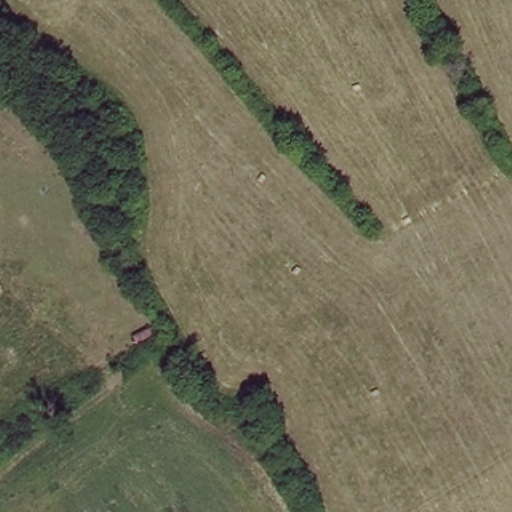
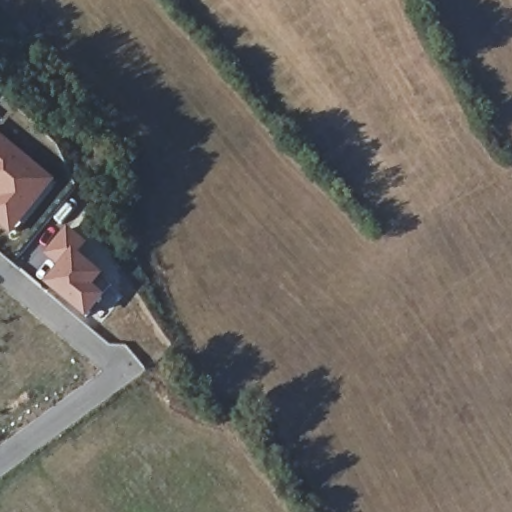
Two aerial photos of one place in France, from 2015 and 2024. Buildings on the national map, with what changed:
new [(51,182),(8,234),(0,228),(0,136),(51,182)]
new [(65,225),(85,242),(76,252),(99,272),(90,285),(100,295),(82,317),(40,283),(54,265),(41,253),(65,225)]

